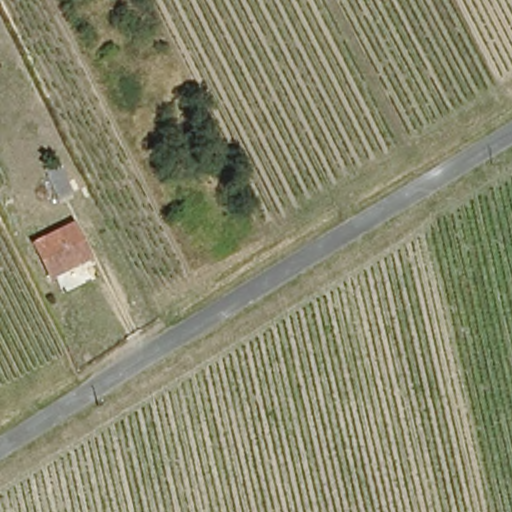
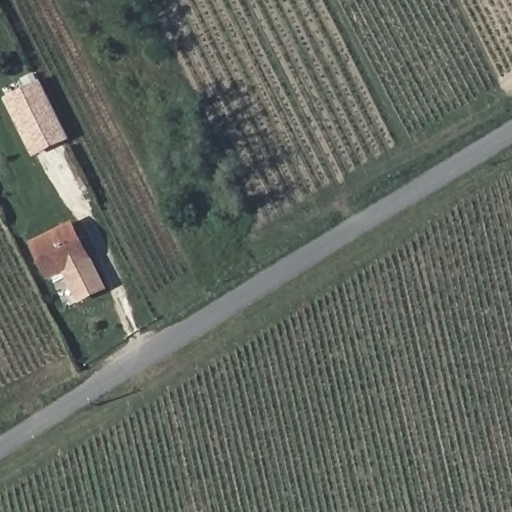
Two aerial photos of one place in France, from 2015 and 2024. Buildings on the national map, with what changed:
new [(33,158),(4,98),(40,80),(70,140),(33,158)]
unchanged [(47,175),(62,168),(73,191),(57,198),(47,175)]
unchanged [(70,225),(87,261),(51,278),(34,242),(70,225)]
new [(93,258),(107,290),(79,303),(64,272),(87,261),(93,258)]

